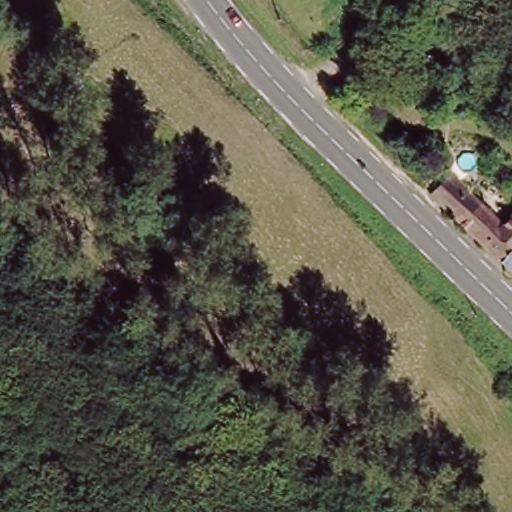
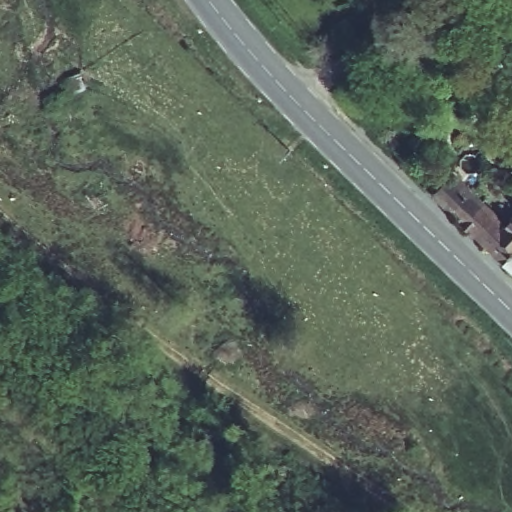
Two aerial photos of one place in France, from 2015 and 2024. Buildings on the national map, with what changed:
unchanged [(465,227),(436,196),(456,175),(509,227),(512,223),(512,271),(465,227)]

